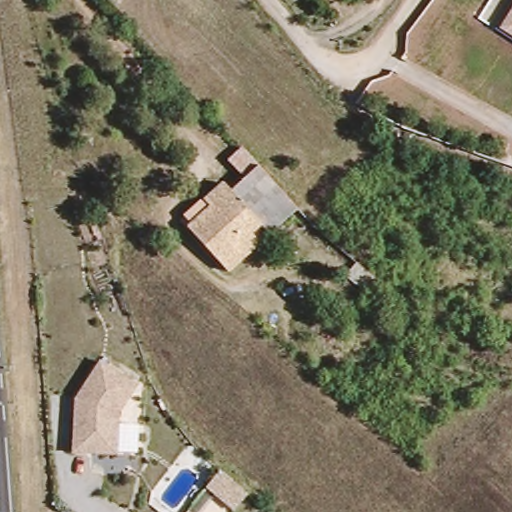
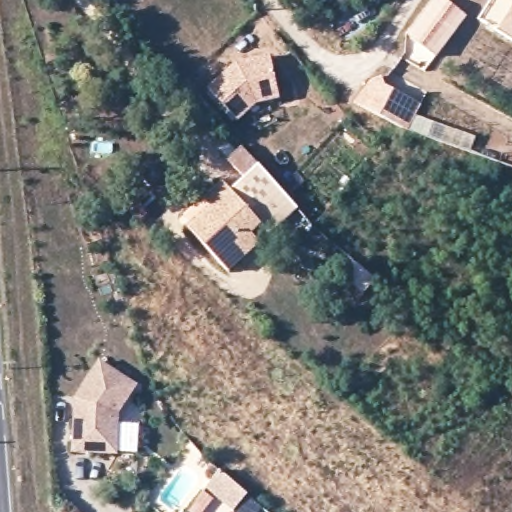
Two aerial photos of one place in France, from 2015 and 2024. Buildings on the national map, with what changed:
new [(448,0),(467,14),(437,54),(408,33),(433,0),(448,0)]
unchanged [(512,16),(512,36),(502,30),(512,16)]
new [(237,62),(270,56),(280,98),(255,105),(238,122),(208,89),(237,62)]
new [(408,132),(357,104),(371,77),(422,104),(408,132)]
unchanged [(260,164),(298,207),(273,232),(265,240),(275,251),(242,284),(195,235),(216,214),(208,205),(227,185),(233,191),(260,164)]
unchanged [(370,302),(352,282),(367,268),(387,287),(370,302)]
unchanged [(74,397),(99,359),(135,384),(116,412),(113,452),(70,449),(73,414),(74,397)]
unchanged [(247,496),(236,512),(234,512),(204,490),(218,468),(247,496)]

